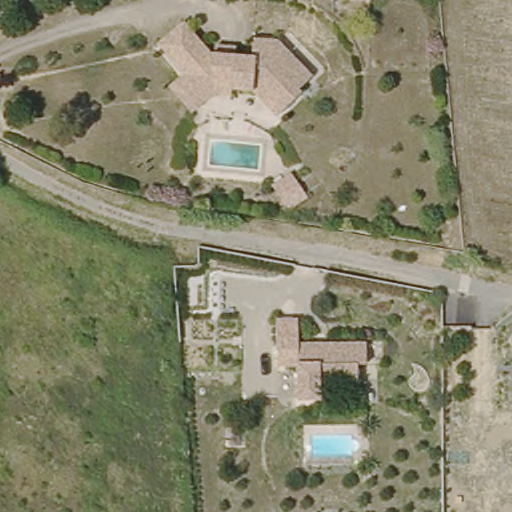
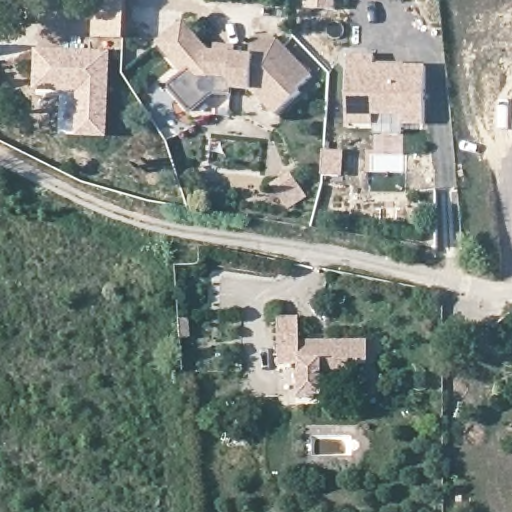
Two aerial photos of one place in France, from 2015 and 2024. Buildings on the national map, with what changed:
new [(93,0),(125,0),(124,41),(91,39),(93,0)]
unchanged [(157,84),(175,74),(152,39),(183,20),(208,56),(210,44),(231,46),(232,57),(247,56),(250,39),(274,40),(310,72),(300,84),(303,87),(280,113),(255,91),(216,90),(216,99),(197,99),(175,111),(157,84)]
new [(35,47),(90,50),(91,39),(124,41),(123,50),(112,50),(107,138),(72,134),(75,94),(60,93),(35,91),(35,47)]
new [(424,125),(403,126),(403,115),(373,114),(373,121),(347,123),(349,57),(373,57),(373,68),(425,67),(424,125)]
new [(297,168),(312,191),(291,203),(277,180),(297,168)]
unchanged [(274,317),(297,317),(297,333),(297,344),(327,345),(367,346),(366,366),(358,366),(357,389),(317,388),(317,396),(295,395),(295,364),(275,363),(274,317)]

